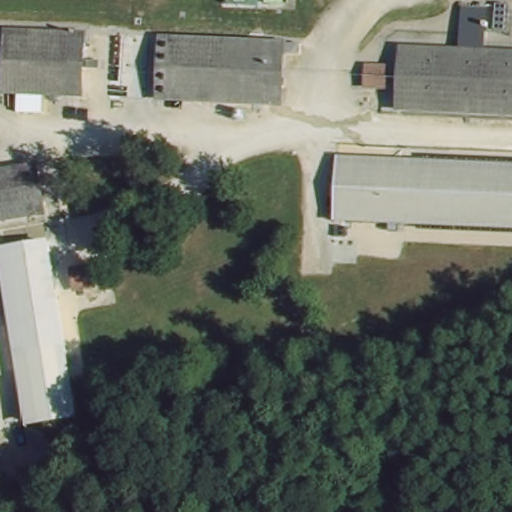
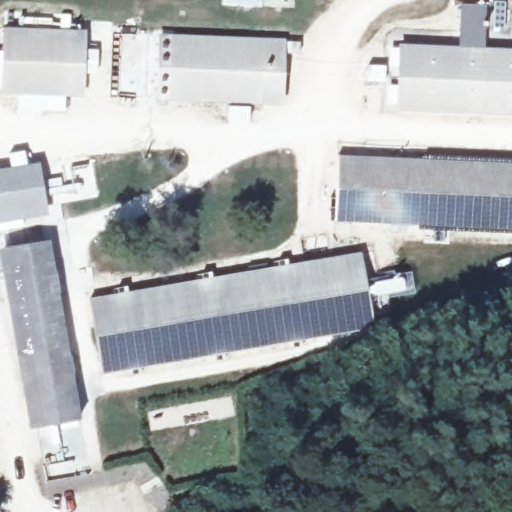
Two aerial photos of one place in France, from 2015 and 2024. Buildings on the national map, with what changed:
unchanged [(399,43),(460,44),(461,1),(482,1),(482,44),(512,45),(512,108),(400,107),(399,43)]
unchanged [(84,88),(3,87),(4,27),(84,28),(84,49),(100,49),(100,59),(84,59),(84,88)]
unchanged [(260,101),(159,100),(162,37),(282,37),(282,85),(282,102),(260,101)]
unchanged [(381,63),(382,83),(365,83),(365,63),(381,63)]
unchanged [(46,212),(0,221),(0,161),(35,154),(46,212)]
unchanged [(337,156),(512,164),(512,231),(335,223),(337,156)]
unchanged [(25,426),(0,275),(0,254),(52,245),(59,286),(47,288),(67,419),(25,426)]
new [(362,252),(366,278),(408,271),(413,294),(369,302),(374,329),(99,374),(87,300),(362,252)]

